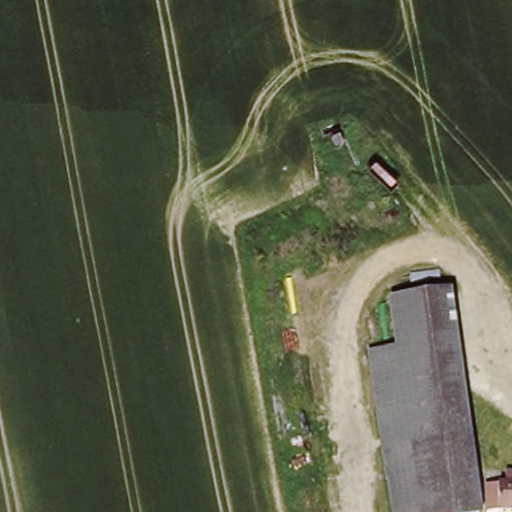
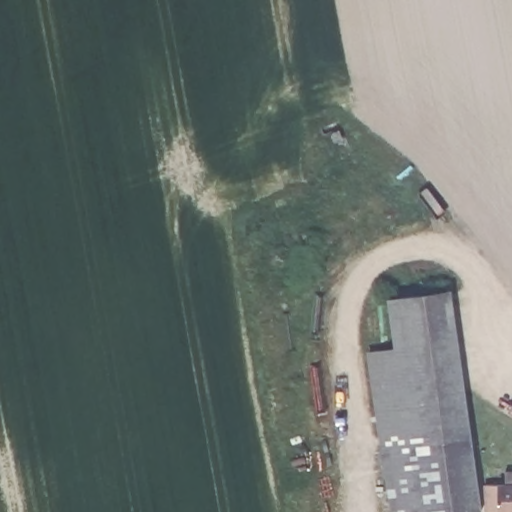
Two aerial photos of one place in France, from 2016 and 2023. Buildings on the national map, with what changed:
unchanged [(394,347),(388,296),(449,289),(471,439),(402,454),(414,512),(390,512),(366,350),(394,347)]
unchanged [(477,512),(414,512),(402,454),(471,439),(486,507),(486,510),(477,512)]
unchanged [(486,481),(511,482),(511,472),(512,472),(512,508),(486,507),(486,481)]

